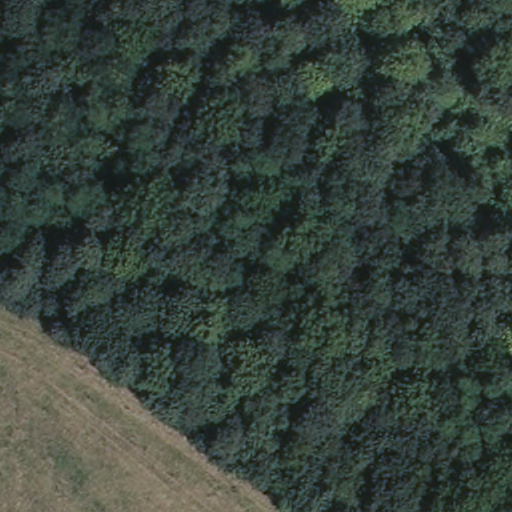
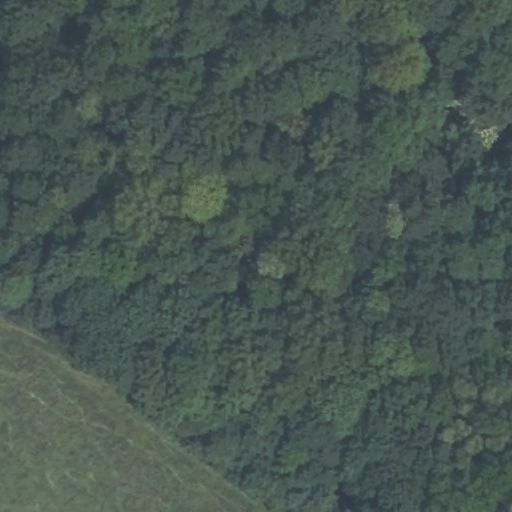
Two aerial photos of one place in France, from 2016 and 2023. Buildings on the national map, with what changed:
unchanged [(414,327),(426,348),(405,361),(392,341),(414,327)]

